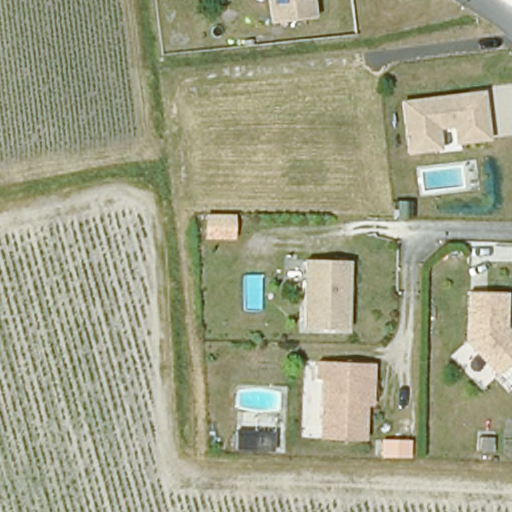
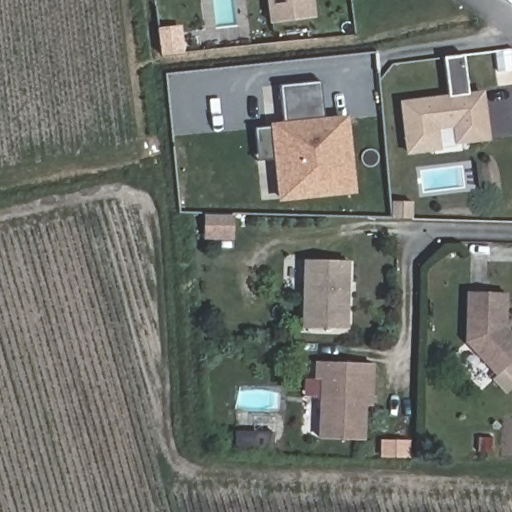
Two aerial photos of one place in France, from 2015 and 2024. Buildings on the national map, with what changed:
unchanged [(274,27),(269,0),(317,0),(320,17),(274,27)]
new [(185,27),(188,55),(165,57),(162,30),(185,27)]
new [(288,126),(285,86),(326,84),(329,123),(339,122),(341,160),(354,160),(356,195),(284,200),(278,127),(288,126)]
unchanged [(492,140),(458,143),(454,129),(441,130),(444,150),(408,155),(403,101),(485,91),(492,140)]
unchanged [(238,241),(203,241),(203,213),(237,214),(238,241)]
unchanged [(351,260),(349,328),(307,327),(309,258),(351,260)]
unchanged [(498,373),(468,338),(469,288),(506,290),(505,325),(506,326),(512,333),(512,387),(509,390),(498,373)]
unchanged [(318,438),(321,378),(315,378),(316,361),(371,364),(370,380),(369,406),(362,405),(361,440),(318,438)]

